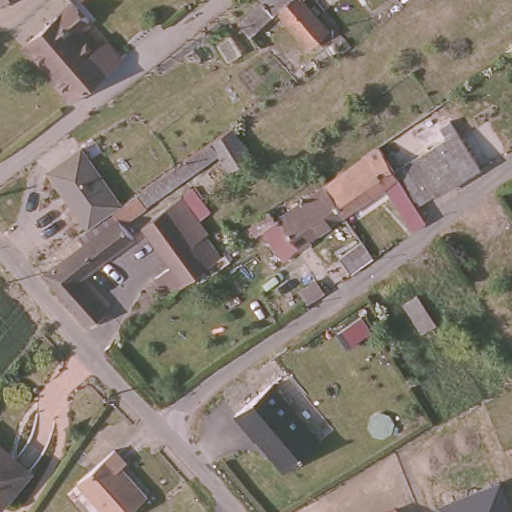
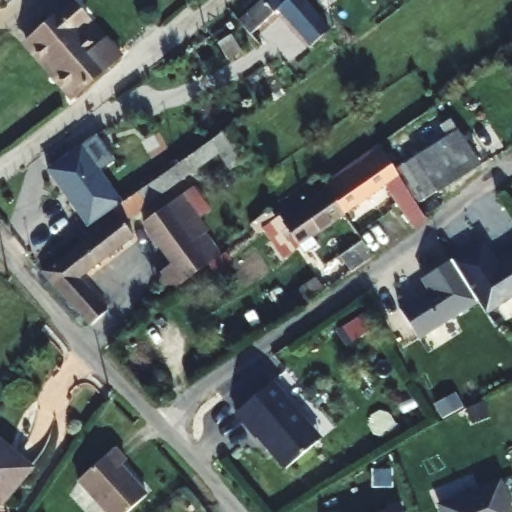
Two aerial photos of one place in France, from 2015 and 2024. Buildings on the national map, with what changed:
unchanged [(335,27),(309,51),(275,20),(272,24),(249,45),(236,33),(262,7),(258,3),(261,0),(306,0),(335,27)]
unchanged [(320,1),(319,0),(321,0),(320,1)]
unchanged [(72,97),(29,41),(79,1),(94,20),(82,29),(99,49),(110,41),(123,57),(72,97)]
unchanged [(212,131),(234,117),(252,146),(226,167),(214,155),(122,226),(132,237),(80,281),(113,313),(97,328),(84,314),(79,318),(38,277),(82,241),(78,236),(212,131)]
unchanged [(402,171),(417,161),(444,141),(436,130),(447,122),(478,165),(439,193),(425,203),(402,171)]
unchanged [(118,205),(90,226),(47,167),(80,144),(124,200),(118,205)]
unchanged [(416,228),(386,187),(345,216),(325,189),(379,152),(429,220),(416,228)]
unchanged [(153,275),(164,265),(137,234),(192,189),(212,212),(202,221),(213,235),(209,239),(222,255),(169,295),(153,275)]
unchanged [(345,216),(300,245),(292,234),(275,245),(272,240),(266,230),(272,226),(325,189),(345,216)]
unchanged [(340,269),(356,257),(345,240),(357,234),(370,253),(373,257),(353,271),(345,276),(340,269)]
new [(512,250),(512,298),(487,313),(480,302),(420,340),(398,307),(427,290),(422,279),(484,241),(495,260),(512,250)]
unchanged [(302,292),(317,280),(325,290),(308,301),(302,292)]
demolished [(415,295),(434,324),(422,331),(404,302),(415,295)]
unchanged [(370,338),(347,354),(337,340),(359,323),(370,338)]
unchanged [(272,393),(277,390),(322,448),(287,477),(274,461),(275,456),(272,453),(262,441),(259,445),(239,418),(272,393)]
unchanged [(32,473),(3,508),(0,505),(0,445),(32,473)]
unchanged [(122,465),(149,495),(127,512),(103,512),(75,480),(115,445),(128,459),(122,465)]
unchanged [(512,493),(512,512),(440,512),(437,503),(507,479),(512,493)]
unchanged [(399,512),(373,512),(396,503),(399,512)]

